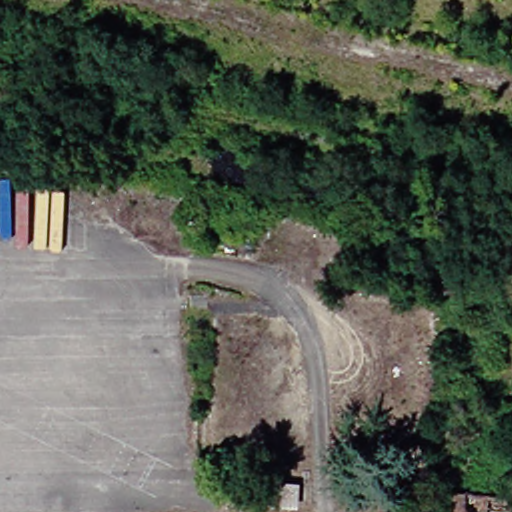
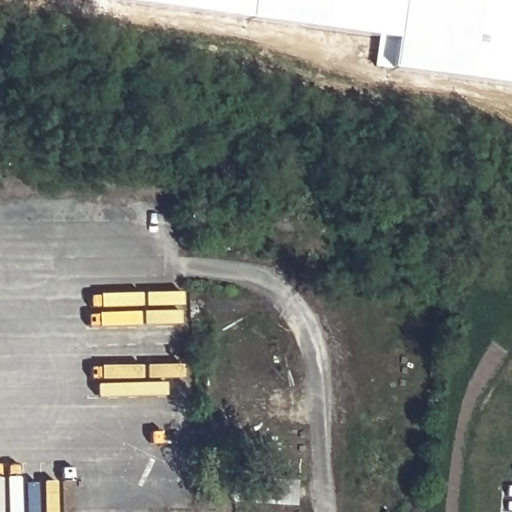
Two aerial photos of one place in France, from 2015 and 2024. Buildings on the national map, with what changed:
new [(397,38),(108,0),(512,0),(512,83),(393,68),(397,38)]
demolished [(512,400),(494,396),(511,325),(512,325),(512,400)]
demolished [(233,476),(301,478),(301,507),(232,505),(233,476)]
demolished [(453,496),(483,500),(512,503),(512,512),(451,512),(453,496)]

